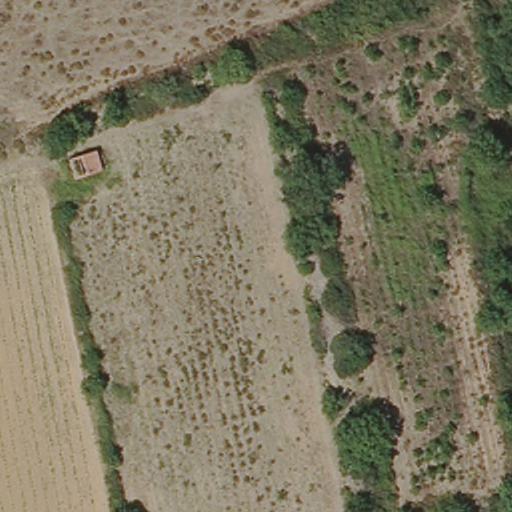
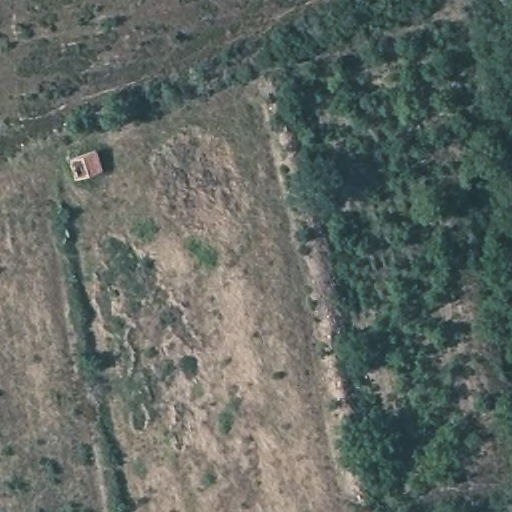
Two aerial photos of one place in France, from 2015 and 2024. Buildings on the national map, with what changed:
unchanged [(105,171),(80,182),(69,158),(94,147),(105,171)]

